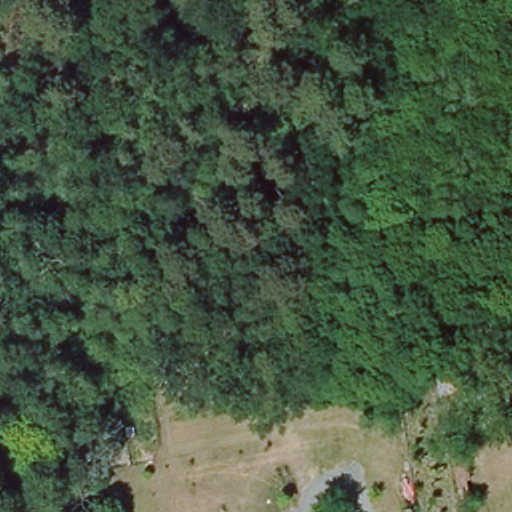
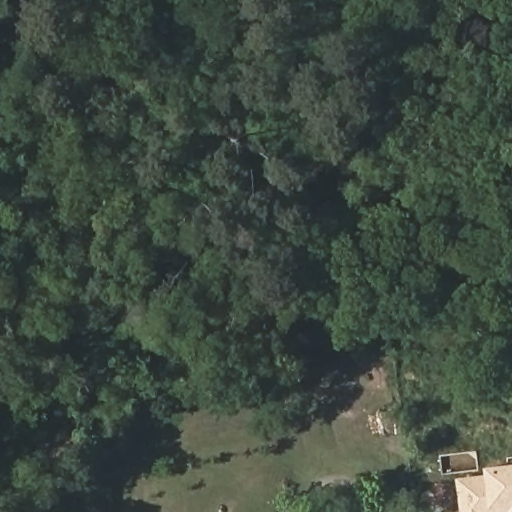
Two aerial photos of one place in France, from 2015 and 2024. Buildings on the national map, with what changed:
new [(484,466),(512,463),(512,512),(460,512),(457,478),(485,474),(484,466)]

